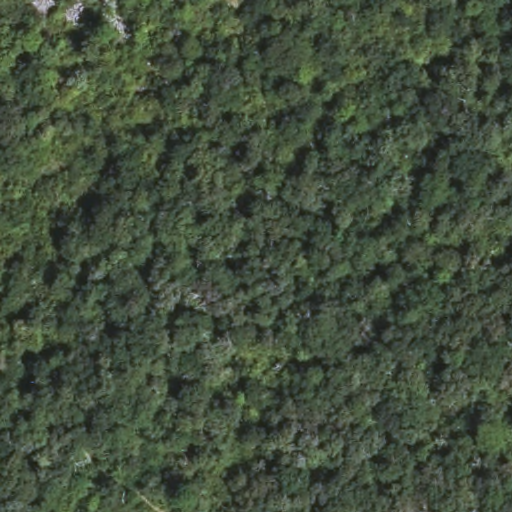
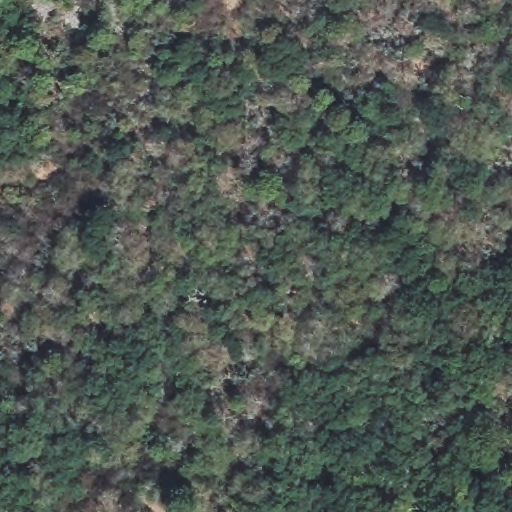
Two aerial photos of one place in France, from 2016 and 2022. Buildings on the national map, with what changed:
[]

